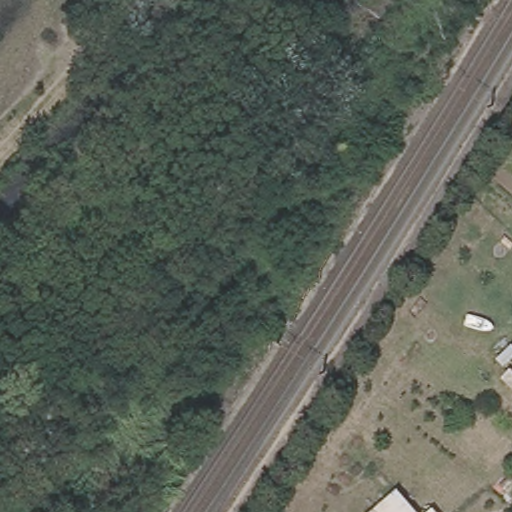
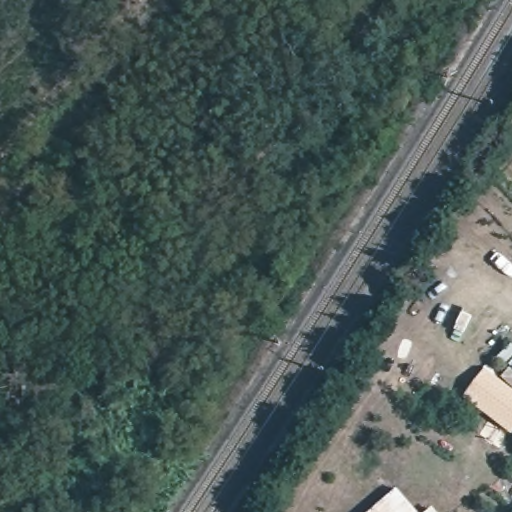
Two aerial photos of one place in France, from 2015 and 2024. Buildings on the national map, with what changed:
new [(512,390),(512,435),(463,397),(485,369),(512,390)]
unchanged [(395,488),(414,512),(370,512),(395,488)]

